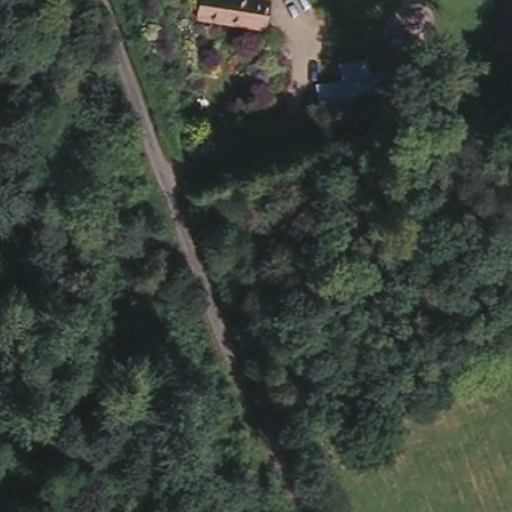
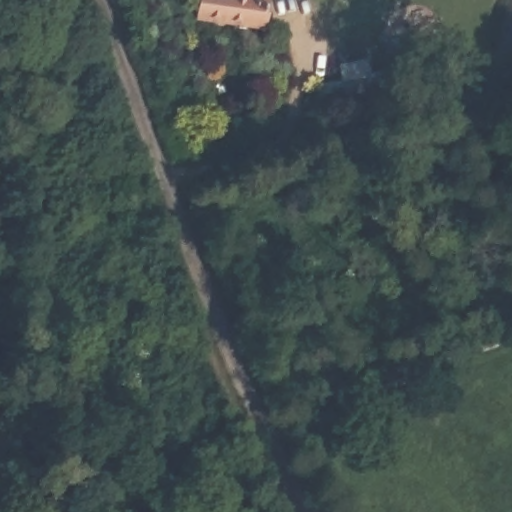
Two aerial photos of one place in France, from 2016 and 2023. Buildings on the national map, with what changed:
unchanged [(273,0),(274,21),(194,15),(193,0),(273,0)]
unchanged [(380,104),(321,116),(315,87),(374,75),(380,104)]

